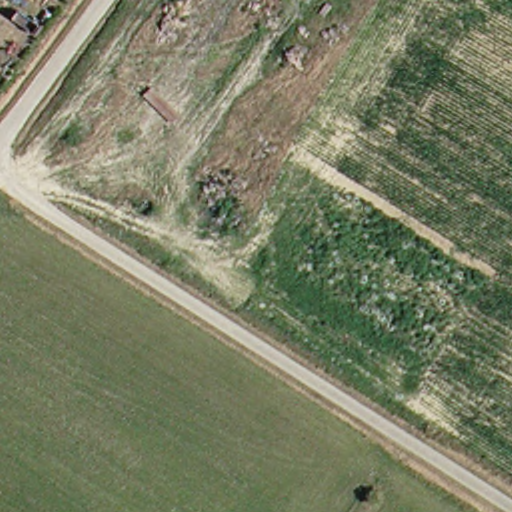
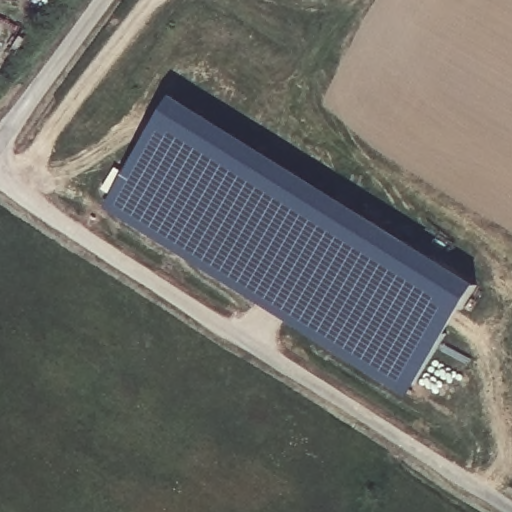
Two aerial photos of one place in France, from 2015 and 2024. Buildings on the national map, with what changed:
new [(408,397),(104,207),(175,94),(478,283),(408,397)]

